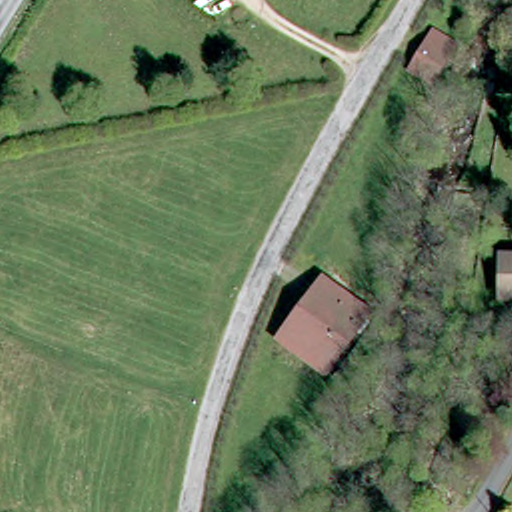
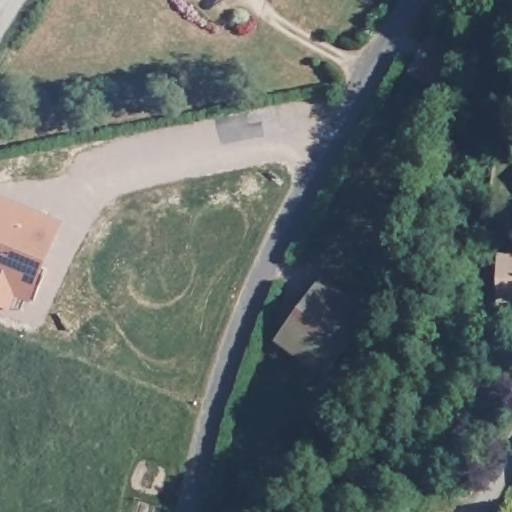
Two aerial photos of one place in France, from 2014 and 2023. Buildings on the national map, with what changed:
unchanged [(407,87),(424,63),(432,51),(449,63),(441,74),(425,99),(407,87)]
new [(65,221),(32,303),(25,300),(22,309),(14,305),(11,311),(0,307),(0,196),(65,221)]
unchanged [(510,264),(512,264),(512,307),(505,306),(510,264)]
unchanged [(320,289),(361,319),(319,378),(280,348),(320,289)]

